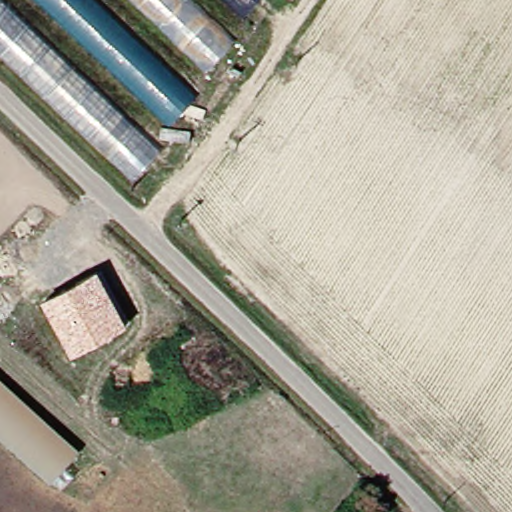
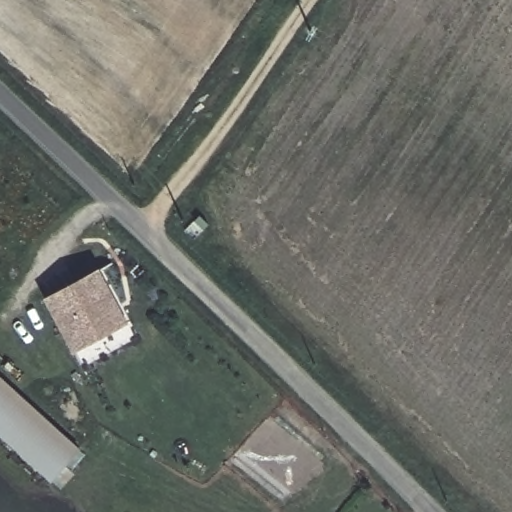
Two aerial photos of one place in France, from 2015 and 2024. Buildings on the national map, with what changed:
demolished [(162,145),(134,177),(0,48),(0,0),(10,0),(162,145)]
demolished [(170,121),(44,0),(104,0),(199,90),(170,121)]
demolished [(138,0),(198,0),(236,37),(208,66),(138,0)]
demolished [(234,0),(258,0),(247,12),(234,0)]
unchanged [(72,354),(43,298),(99,268),(128,323),(72,354)]
unchanged [(84,447),(54,478),(0,429),(0,372),(84,447)]

